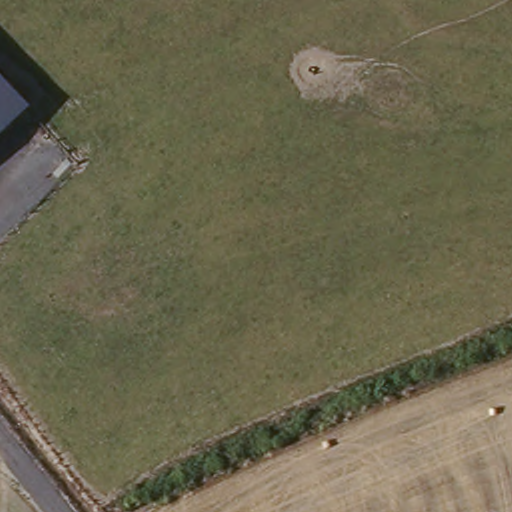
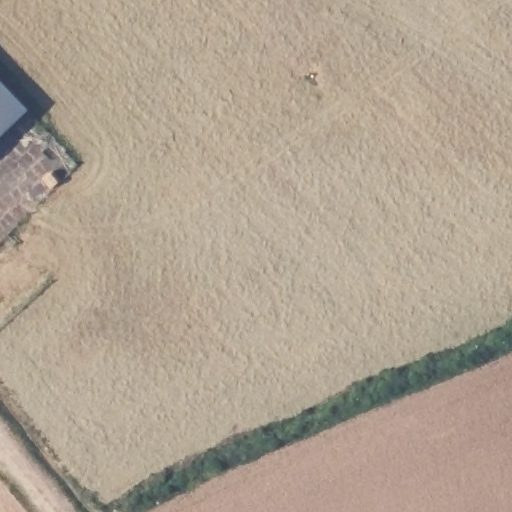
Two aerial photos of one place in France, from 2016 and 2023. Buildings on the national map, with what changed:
unchanged [(27,109),(0,133),(0,80),(27,109)]

